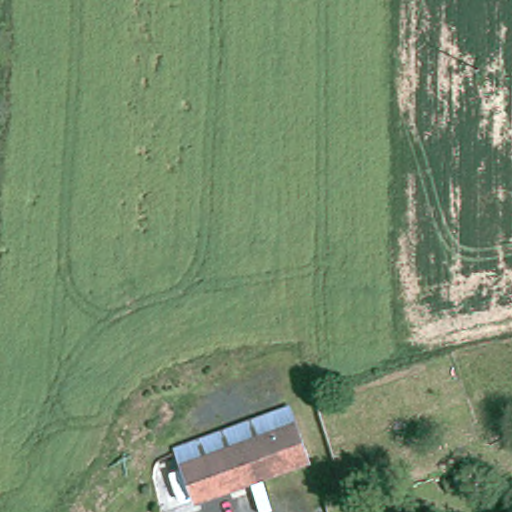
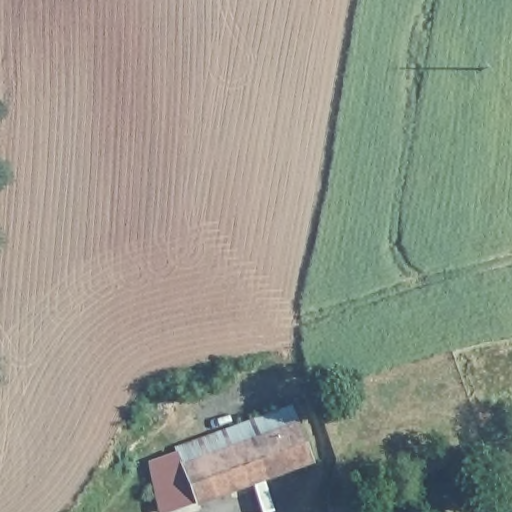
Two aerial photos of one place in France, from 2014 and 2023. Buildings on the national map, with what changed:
unchanged [(195,485),(183,449),(202,444),(297,414),(313,466),(200,501),(195,485)]
new [(195,485),(200,501),(169,512),(157,512),(147,462),(183,449),(195,485)]

